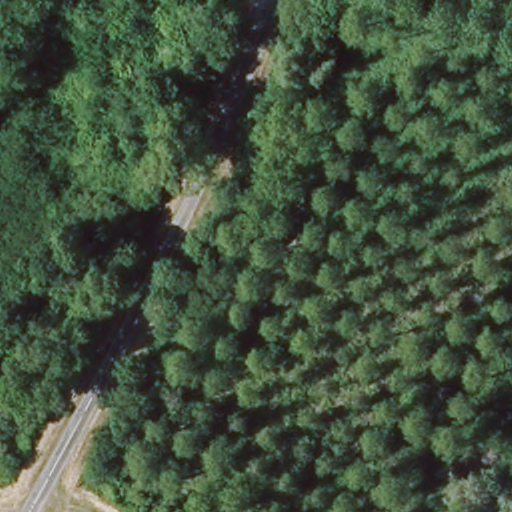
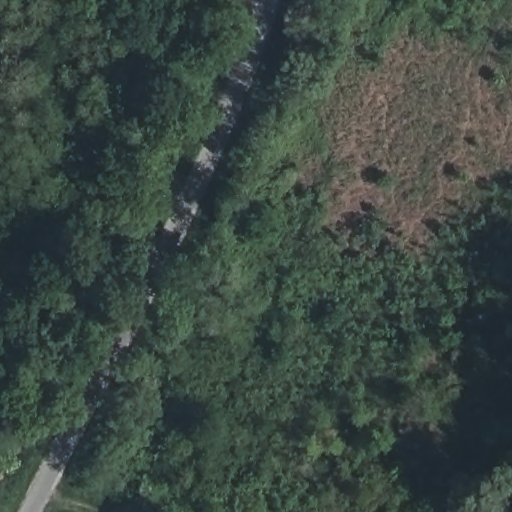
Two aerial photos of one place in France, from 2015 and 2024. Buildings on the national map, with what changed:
[]

